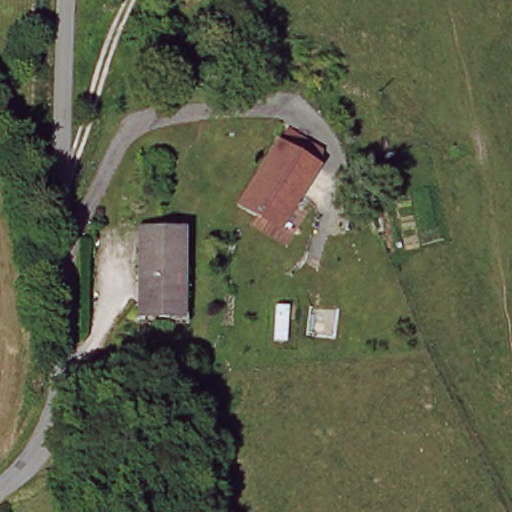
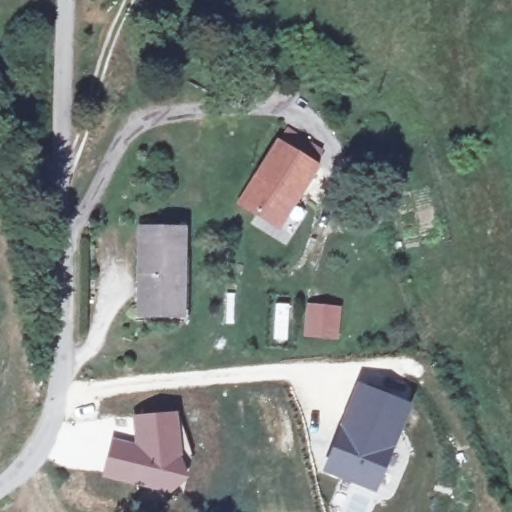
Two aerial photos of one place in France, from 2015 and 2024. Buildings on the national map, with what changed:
unchanged [(319,157),(285,217),(249,199),(280,140),(319,157)]
unchanged [(185,233),(183,320),(140,318),(142,232),(185,233)]
new [(337,310),(335,338),(307,336),(310,307),(337,310)]
new [(406,405),(392,443),(376,488),(328,471),(358,387),(392,400),(406,405)]
new [(112,437),(133,442),(132,414),(178,410),(184,457),(188,478),(165,496),(143,488),(102,478),(112,437)]

